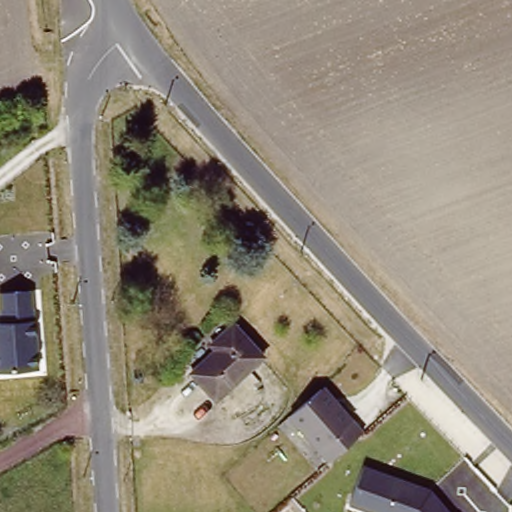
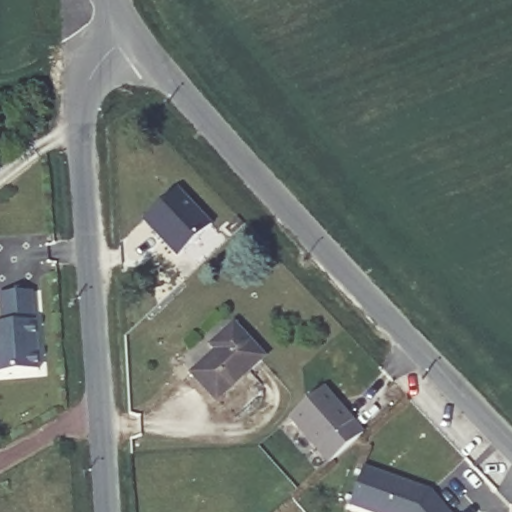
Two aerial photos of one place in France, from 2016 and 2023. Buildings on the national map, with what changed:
new [(175,256),(141,220),(176,187),(211,224),(175,256)]
unchanged [(38,370),(0,373),(0,290),(31,289),(38,370)]
unchanged [(217,411),(191,383),(217,361),(211,355),(235,334),(264,368),(217,411)]
unchanged [(322,381),(362,432),(328,466),(288,414),(322,381)]
unchanged [(452,512),(366,512),(348,506),(362,464),(428,484),(452,512)]

